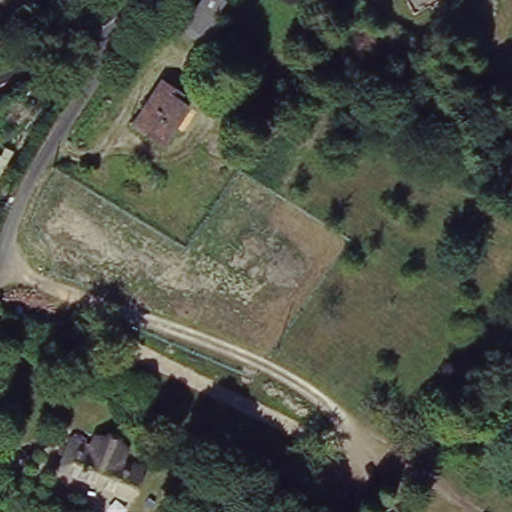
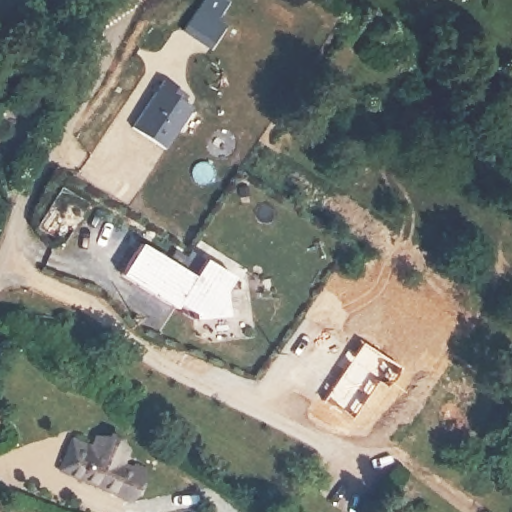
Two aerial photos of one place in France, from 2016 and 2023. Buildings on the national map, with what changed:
unchanged [(221,0),(223,1),(213,15),(220,23),(204,46),(179,25),(199,0),(221,0)]
unchanged [(512,80),(504,76),(512,63),(512,80)]
unchanged [(168,73),(190,89),(184,99),(191,108),(165,144),(134,120),(168,73)]
new [(134,244),(191,277),(204,258),(239,279),(224,300),(225,321),(191,321),(191,315),(115,277),(134,244)]
unchanged [(77,439),(103,449),(101,453),(145,476),(135,501),(63,469),(77,439)]

